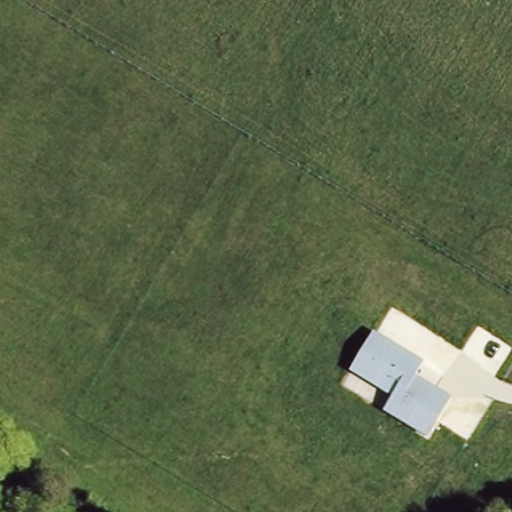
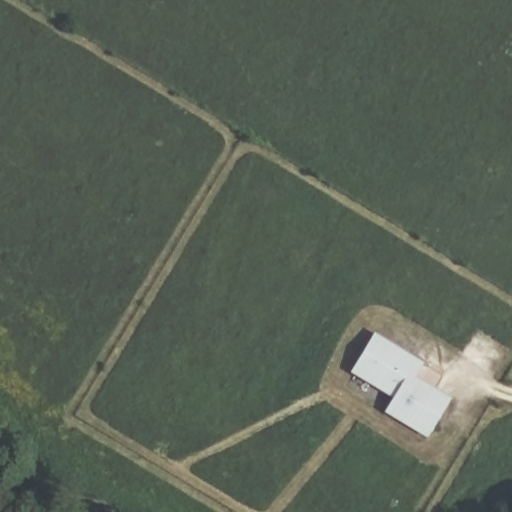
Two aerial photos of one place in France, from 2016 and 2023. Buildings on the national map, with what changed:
unchanged [(427,437),(383,410),(392,395),(350,371),(374,330),(425,361),(417,375),(450,395),(427,437)]

